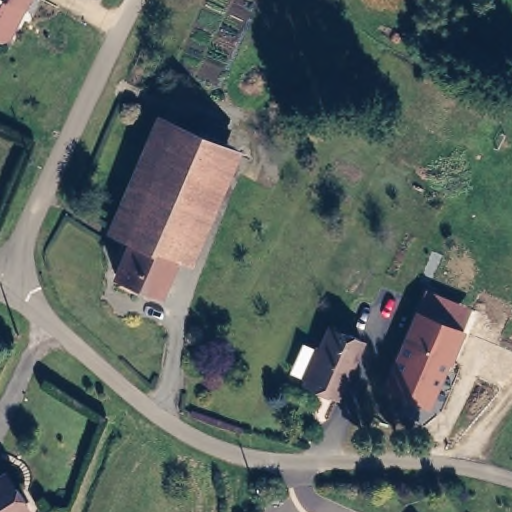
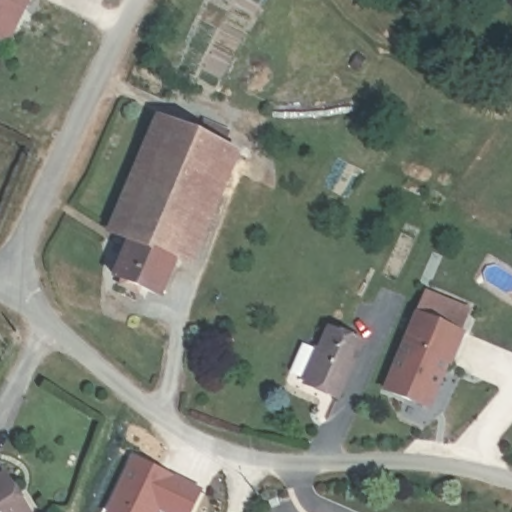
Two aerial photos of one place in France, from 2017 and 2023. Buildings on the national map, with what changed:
unchanged [(0,39),(0,0),(32,0),(11,45),(0,39)]
unchanged [(206,134),(212,120),(237,130),(166,295),(146,286),(143,291),(126,285),(129,279),(122,275),(134,247),(129,245),(133,237),(131,235),(178,122),(206,134)]
unchanged [(468,332),(446,386),(438,385),(428,407),(387,389),(419,310),(468,332)]
unchanged [(365,345),(345,397),(312,383),(333,332),(365,345)]
new [(132,458),(203,490),(193,512),(108,512),(132,458)]
unchanged [(6,476),(19,495),(32,512),(0,512),(0,480),(6,476)]

